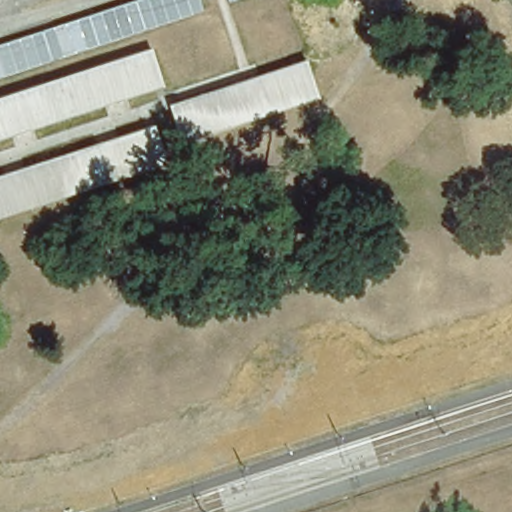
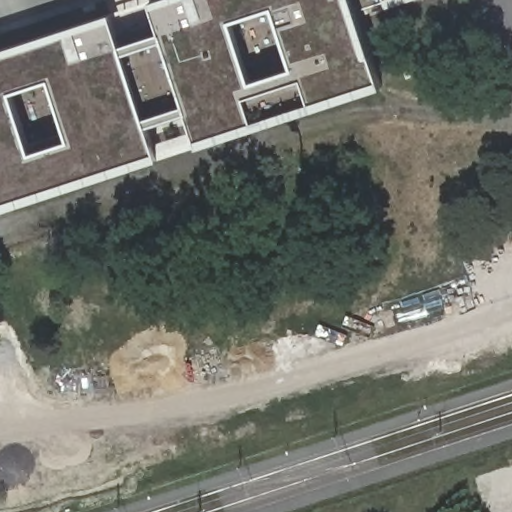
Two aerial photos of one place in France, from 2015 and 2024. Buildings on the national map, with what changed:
demolished [(197,0),(201,12),(0,77),(0,44),(139,0),(197,0)]
new [(355,12),(367,53),(371,52),(381,81),(311,105),(311,102),(255,120),(256,122),(198,142),(189,114),(185,116),(190,127),(170,134),(152,139),(157,155),(159,159),(21,204),(0,211),(0,49),(111,12),(121,45),(162,32),(153,4),(164,0),(390,0),(385,2),(355,12)]
demolished [(241,0),(227,5),(226,0),(241,0)]
demolished [(162,89),(0,140),(0,99),(150,51),(162,89)]
demolished [(305,63),(317,101),(181,145),(169,107),(305,63)]
demolished [(166,166),(0,218),(0,177),(154,128),(166,166)]

